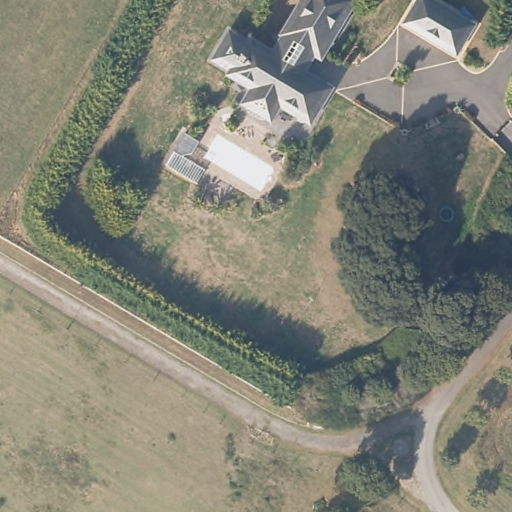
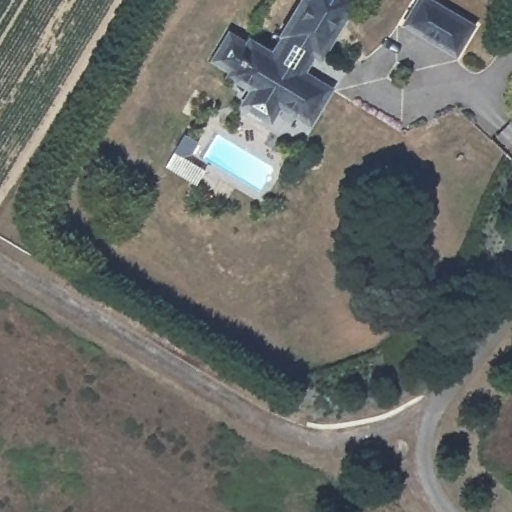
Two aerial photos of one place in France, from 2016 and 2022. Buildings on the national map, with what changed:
unchanged [(252,79),(229,64),(230,62),(216,53),(219,49),(215,46),(228,25),(232,29),(235,24),(249,34),(250,31),(272,46),(278,37),(303,0),(344,0),(348,3),(338,17),(342,19),(320,53),(318,54),(317,56),(315,57),(312,58),(310,58),(306,55),(302,53),(296,61),(323,79),(320,84),(321,86),(321,88),(321,90),(320,93),(320,94),(319,96),(318,99),(317,100),(315,102),(314,104),(312,105),(310,106),(308,107),(306,108),(304,108),(301,112),(276,95),(268,108),(244,92),(252,79)]
unchanged [(417,29),(403,20),(410,9),(416,0),(433,0),(472,26),(462,43),(454,54),(440,45),(417,29)]

